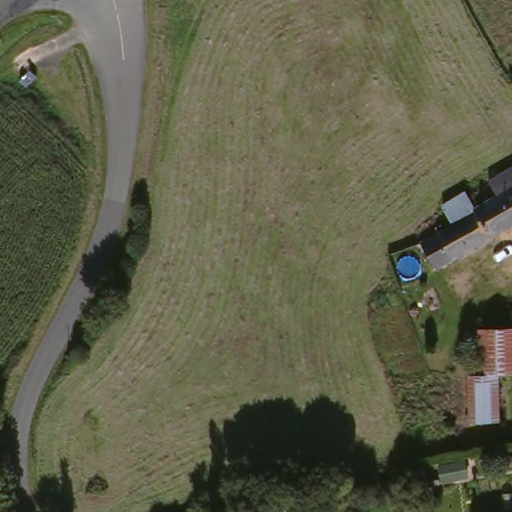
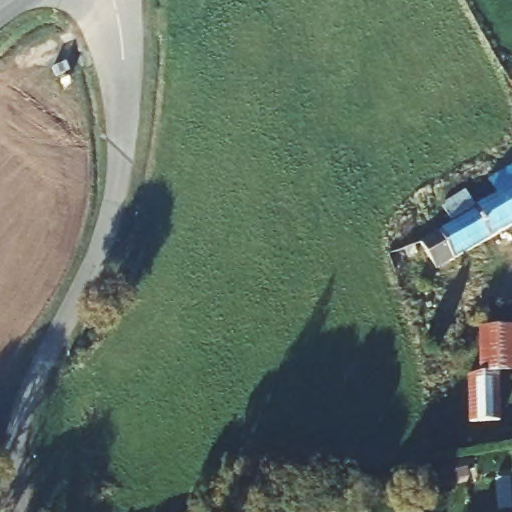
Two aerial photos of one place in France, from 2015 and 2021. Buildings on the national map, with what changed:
unchanged [(458,216),(446,195),(471,182),(483,202),(505,190),(494,170),(512,160),(512,223),(441,261),(426,232),(458,216)]
unchanged [(496,368),(476,369),(476,323),(512,322),(512,368),(496,368)]
unchanged [(497,416),(471,417),(467,418),(466,370),(476,369),(496,368),(497,416)]

